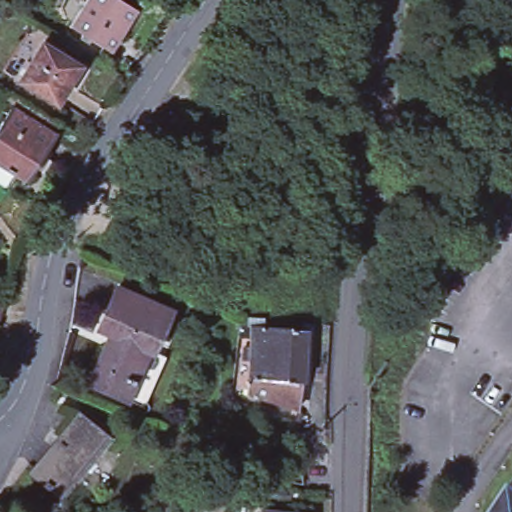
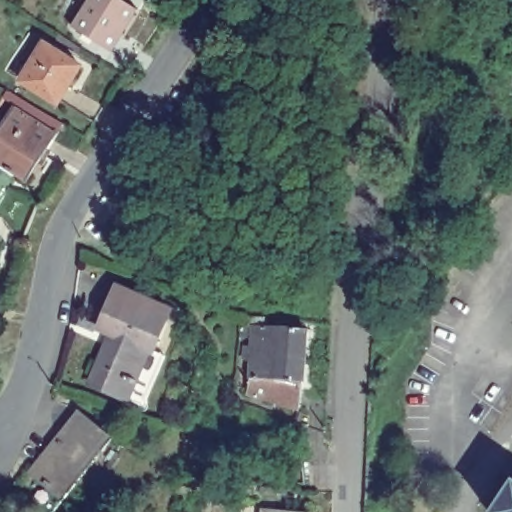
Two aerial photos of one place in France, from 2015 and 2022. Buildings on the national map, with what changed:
unchanged [(79,21),(94,0),(132,0),(143,8),(115,47),(79,21)]
unchanged [(49,40),(85,63),(62,100),(26,76),(49,40)]
unchanged [(12,109),(55,138),(41,159),(40,158),(23,182),(10,173),(9,174),(3,170),(4,169),(0,166),(0,127),(12,109)]
unchanged [(116,330),(104,325),(120,285),(173,305),(157,346),(150,344),(138,374),(142,376),(135,394),(137,394),(135,398),(95,381),(116,330)]
unchanged [(250,362),(250,348),(258,349),(257,329),(252,328),(252,319),(270,320),(270,321),(269,330),(302,333),(303,328),(307,328),(307,333),(310,333),(306,384),(255,381),(256,363),(250,362)]
unchanged [(303,410),(253,394),(255,381),(306,384),(303,410)]
unchanged [(50,488),(47,489),(45,487),(42,485),(43,482),(31,472),(51,447),(53,449),(63,437),(61,435),(78,414),(107,437),(72,480),(76,483),(59,495),(50,488)]
unchanged [(512,490),(512,512),(498,512),(512,490)]
unchanged [(297,491),(296,498),(290,498),(291,491),(297,491)]
unchanged [(262,509),(294,512),(262,512),(262,509)]

